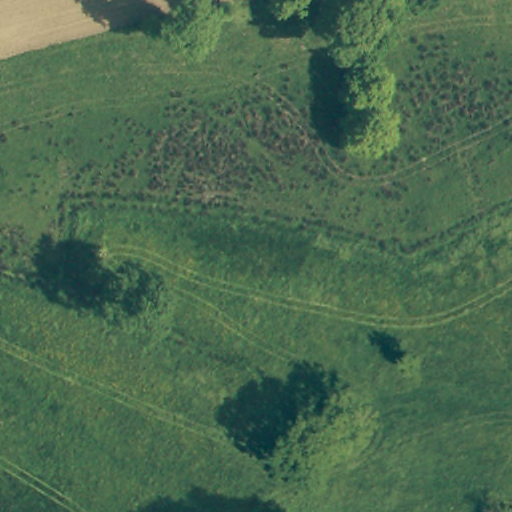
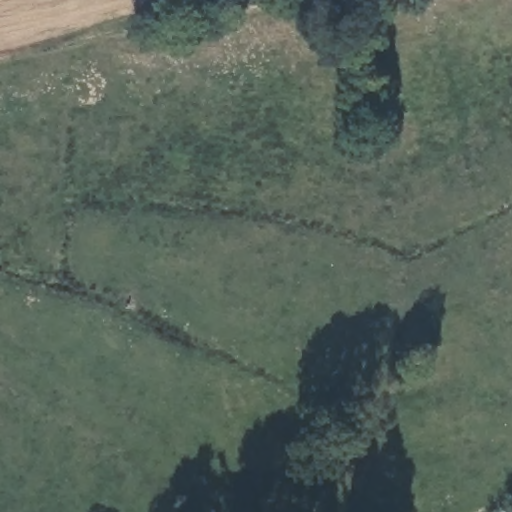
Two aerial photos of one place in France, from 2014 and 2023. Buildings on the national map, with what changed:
[]

